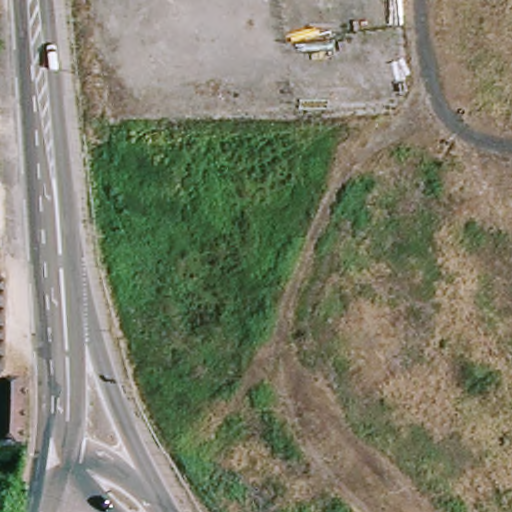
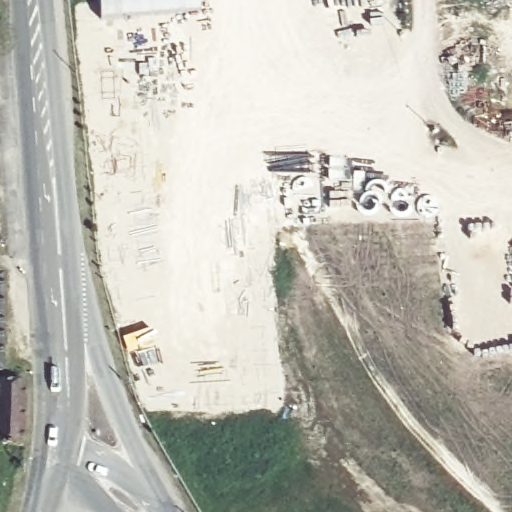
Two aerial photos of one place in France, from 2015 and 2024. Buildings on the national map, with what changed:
new [(200,10),(100,19),(98,0),(199,0),(200,10)]
unchanged [(0,374),(0,279),(7,280),(7,375),(0,374)]
unchanged [(31,447),(0,446),(0,380),(10,380),(35,382),(31,447)]

